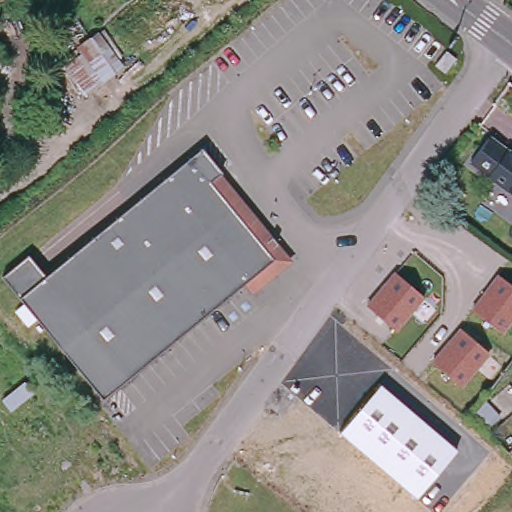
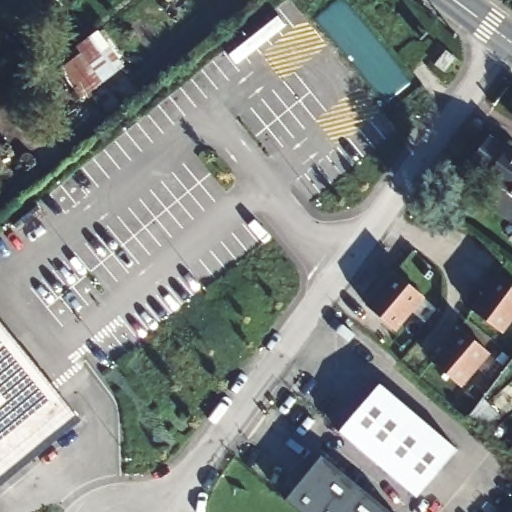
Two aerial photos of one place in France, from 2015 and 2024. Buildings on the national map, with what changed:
demolished [(285,0),(268,22),(253,9),(262,0),(285,0)]
unchanged [(125,65),(83,95),(59,64),(81,52),(77,45),(101,30),(125,65)]
demolished [(0,255),(3,252),(19,273),(33,262),(140,175),(188,137),(207,160),(195,169),(258,247),(247,256),(89,384),(0,274),(0,255)]
unchanged [(500,146),(512,155),(512,190),(483,169),(500,146)]
unchanged [(425,298),(396,332),(365,305),(393,272),(425,298)]
unchanged [(512,286),(512,322),(502,335),(469,311),(497,275),(512,286)]
new [(0,483),(0,317),(81,422),(0,483)]
unchanged [(490,355),(460,389),(430,362),(459,329),(490,355)]
unchanged [(416,498),(339,433),(379,385),(457,451),(416,498)]
new [(287,501),(322,457),(390,512),(301,512),(287,501)]

